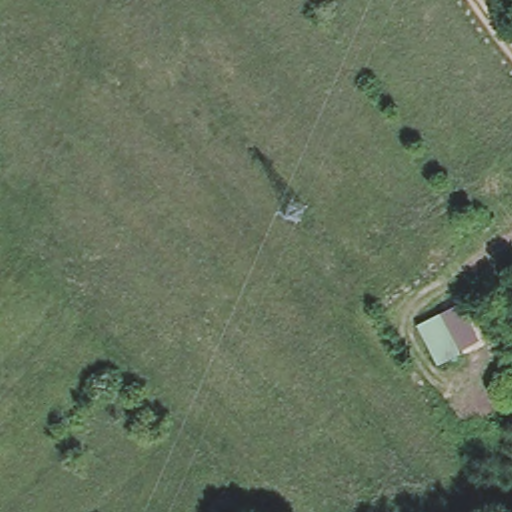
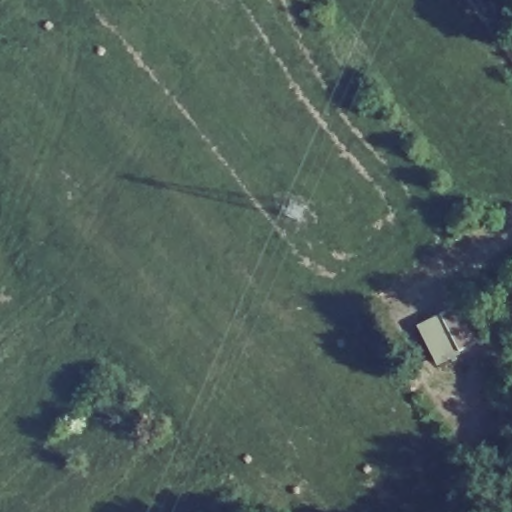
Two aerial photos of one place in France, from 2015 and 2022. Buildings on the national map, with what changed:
unchanged [(464,351),(434,366),(416,326),(444,313),(464,351)]

